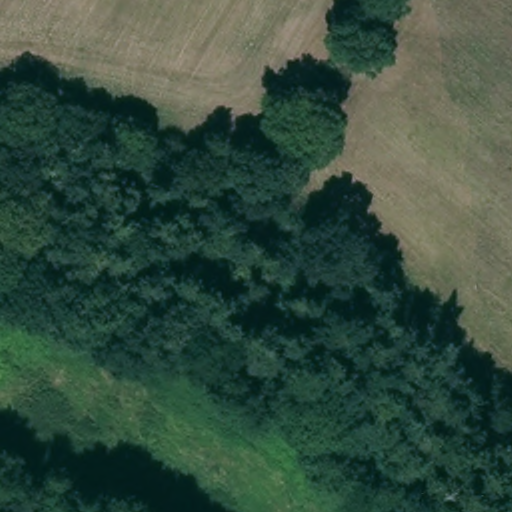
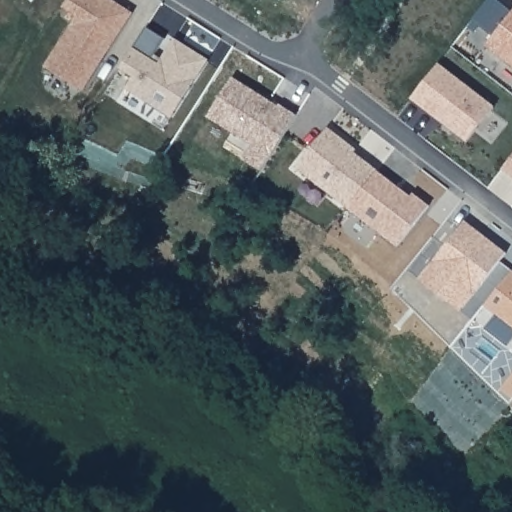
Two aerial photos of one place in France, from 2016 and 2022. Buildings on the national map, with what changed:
new [(47,65),(78,15),(65,6),(69,0),(115,0),(134,11),(109,51),(102,62),(85,89),(47,65)]
new [(512,11),(512,64),(487,44),(512,11)]
new [(166,38),(156,54),(162,58),(175,38),(209,59),(172,117),(127,88),(134,76),(121,68),(147,26),(166,38)]
new [(439,64),(495,107),(469,140),(413,97),(439,64)]
new [(252,88),(280,105),(281,104),(298,114),(263,170),(245,159),(254,144),(209,116),(234,76),(252,88)]
new [(329,126),(358,149),(353,154),(362,161),(364,158),(379,170),(349,208),(298,167),(329,126)]
new [(512,174),(504,168),(512,157),(512,174)]
new [(392,180),(400,187),(412,197),(415,193),(431,205),(399,246),(349,208),(379,170),(392,180)]
new [(466,220),(483,234),(507,253),(462,311),(421,279),(460,229),(466,220)]
new [(512,325),(486,305),(512,271),(512,325)]

